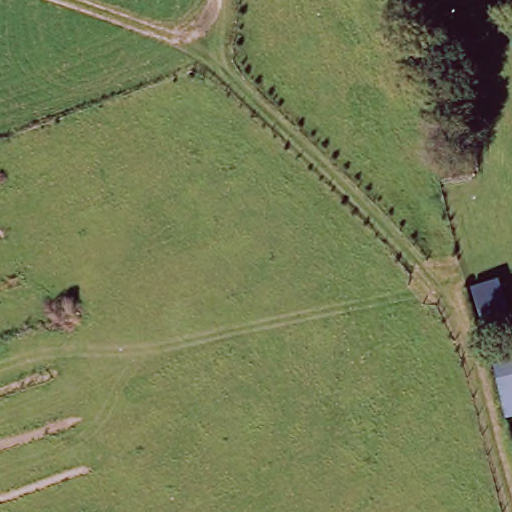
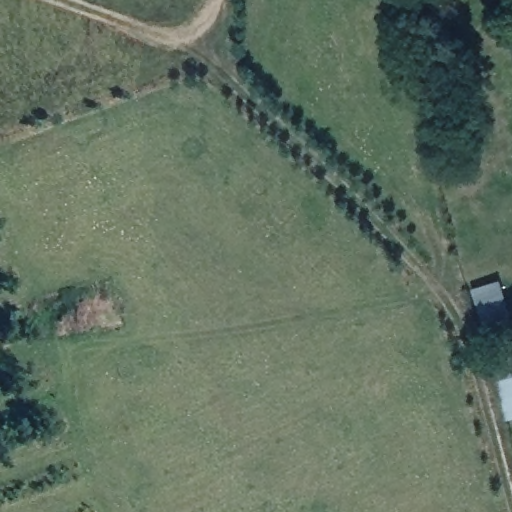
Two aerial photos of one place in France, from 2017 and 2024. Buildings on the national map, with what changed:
unchanged [(512,420),(507,421),(497,380),(487,382),(464,290),(495,282),(512,362),(512,420)]

